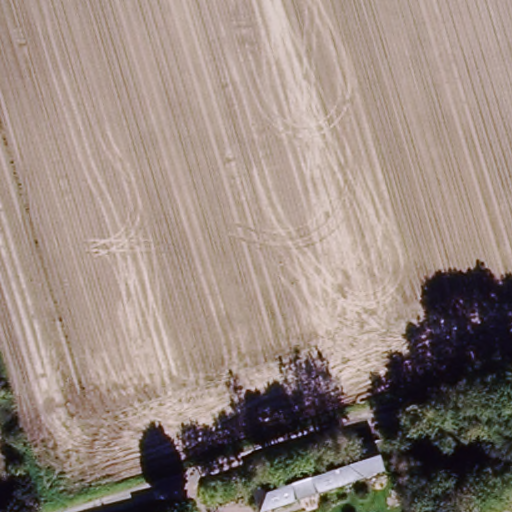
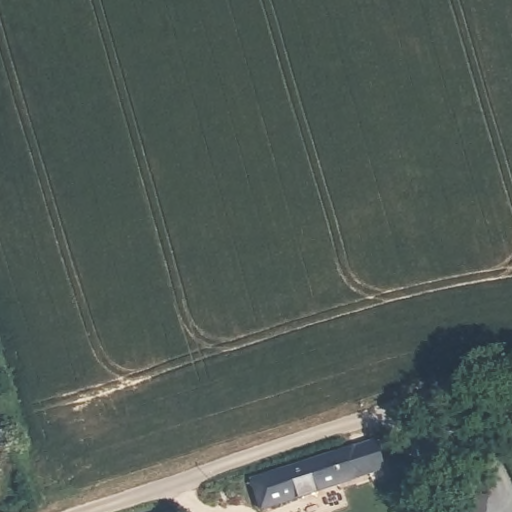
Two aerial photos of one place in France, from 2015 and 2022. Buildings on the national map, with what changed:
unchanged [(359,484),(270,512),(262,512),(255,485),(350,456),(359,484)]

